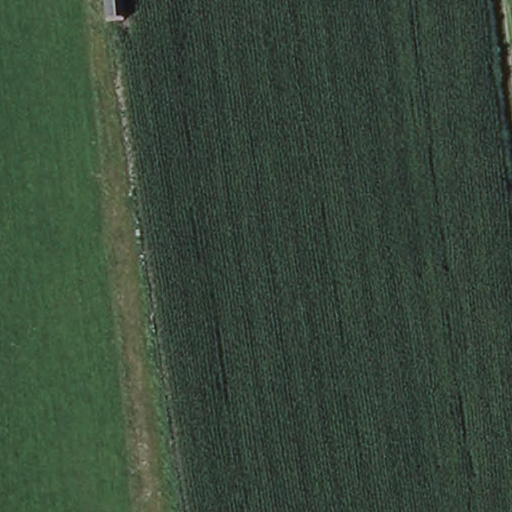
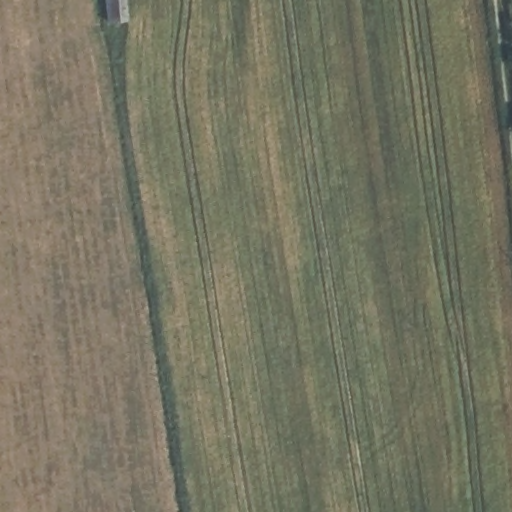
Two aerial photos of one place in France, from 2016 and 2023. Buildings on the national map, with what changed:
unchanged [(121,29),(102,30),(102,0),(121,0),(121,29)]

